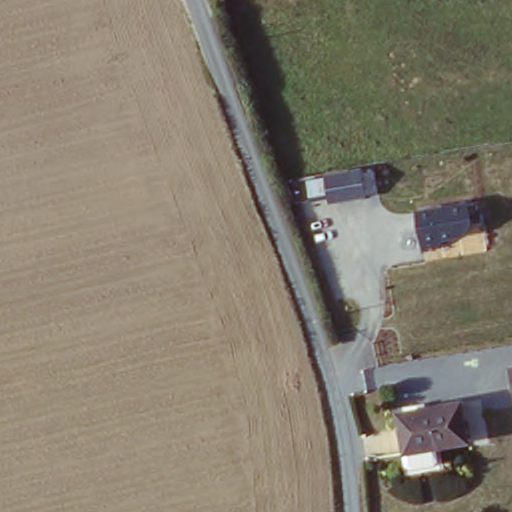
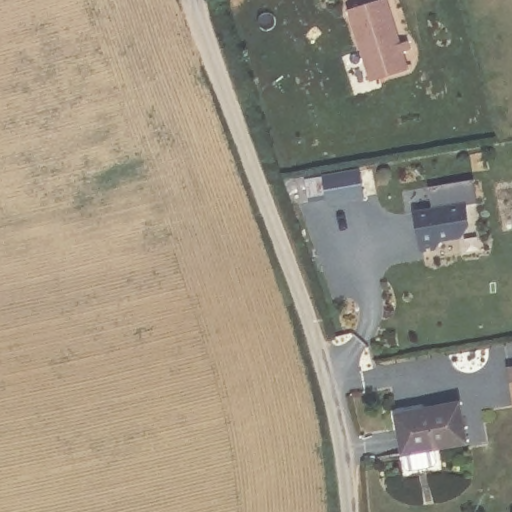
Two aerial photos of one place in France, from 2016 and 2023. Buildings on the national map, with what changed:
new [(388,0),(409,69),(371,79),(348,7),(368,0),(388,0)]
unchanged [(326,198),(310,200),(306,181),(325,178),(363,170),(367,197),(328,206),(326,198)]
unchanged [(416,212),(433,209),(429,185),(473,179),(476,202),(469,203),(473,226),(459,243),(422,247),(416,212)]
unchanged [(508,369),(512,368),(512,393),(508,369)]
unchanged [(405,464),(401,447),(395,414),(459,402),(466,438),(436,442),(439,459),(405,464)]

